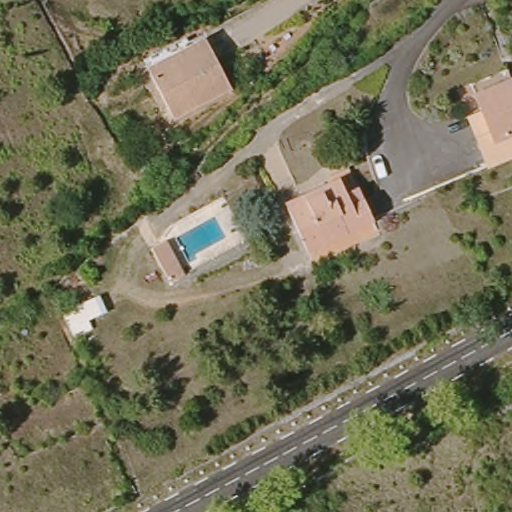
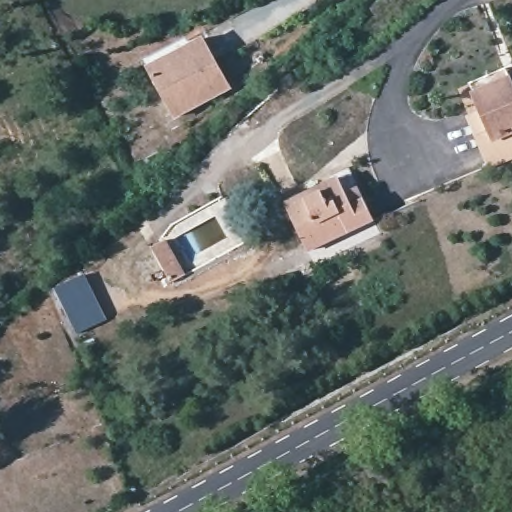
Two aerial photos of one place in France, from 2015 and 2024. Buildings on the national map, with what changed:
unchanged [(172,116),(147,66),(197,34),(227,81),(172,116)]
unchanged [(469,124),(484,117),(475,101),(478,100),(477,97),(471,86),(502,70),(507,82),(510,84),(512,87),(512,162),(495,170),(469,124)]
unchanged [(134,165),(147,157),(155,170),(143,179),(134,165)]
unchanged [(330,189),(349,179),(370,219),(305,254),(284,216),(319,200),(315,195),(330,189)]
unchanged [(171,238),(189,272),(174,281),(157,246),(171,238)]
new [(77,333),(56,288),(85,274),(107,319),(77,333)]

